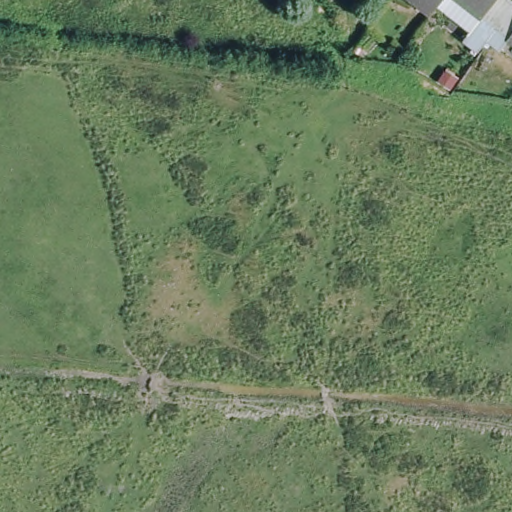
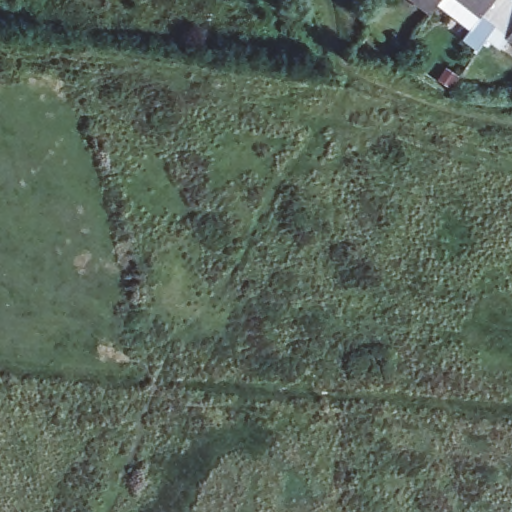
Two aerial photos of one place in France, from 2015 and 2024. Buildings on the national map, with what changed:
unchanged [(437,0),(428,13),(409,0),(437,0)]
unchanged [(428,13),(437,0),(444,0),(432,16),(428,13)]
unchanged [(461,40),(480,15),(461,0),(507,0),(511,4),(493,26),(474,50),(461,40)]
unchanged [(512,4),(512,41),(493,26),(511,4),(512,4)]

